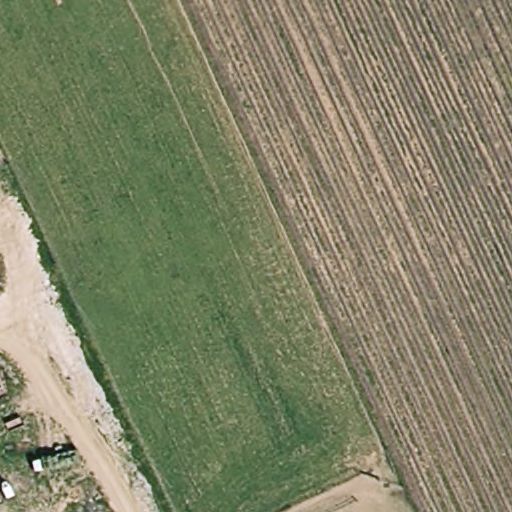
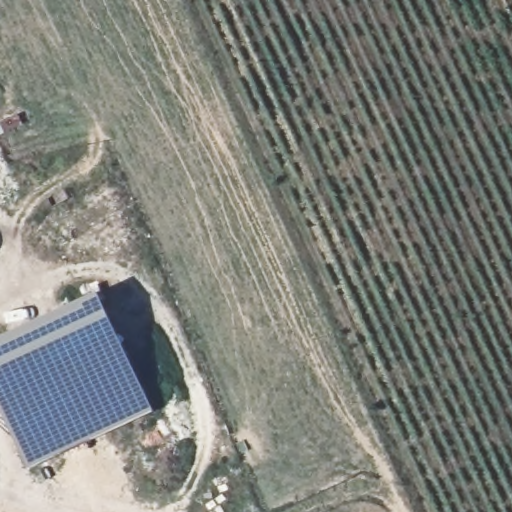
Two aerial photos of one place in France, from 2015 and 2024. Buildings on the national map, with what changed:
new [(27,463),(0,412),(0,336),(96,293),(149,409),(27,463)]

